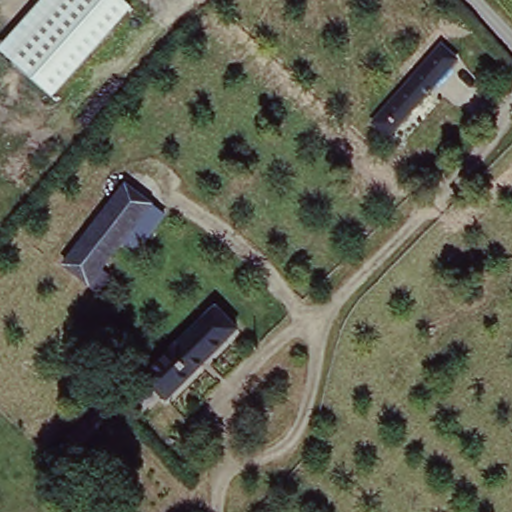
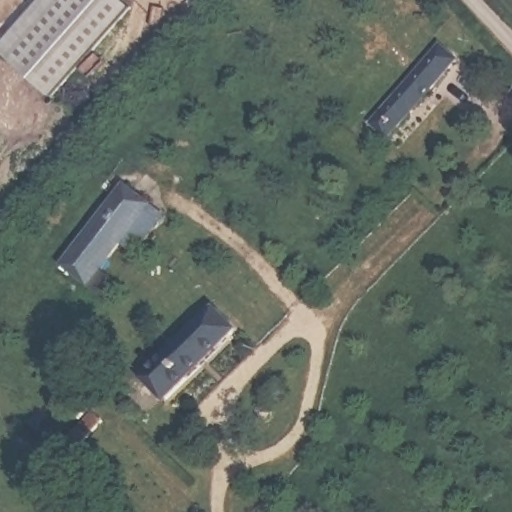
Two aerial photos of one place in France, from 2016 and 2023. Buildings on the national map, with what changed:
unchanged [(0,51),(0,48),(42,0),(122,0),(132,9),(52,98),(0,51)]
unchanged [(463,65),(386,143),(367,125),(441,45),(463,65)]
unchanged [(137,214),(87,287),(64,270),(116,195),(137,214)]
unchanged [(174,394),(153,374),(216,305),(237,325),(174,394)]
unchanged [(109,422),(82,451),(67,436),(94,409),(109,422)]

